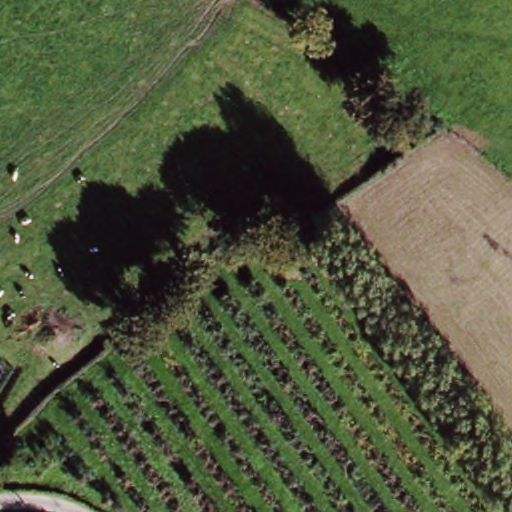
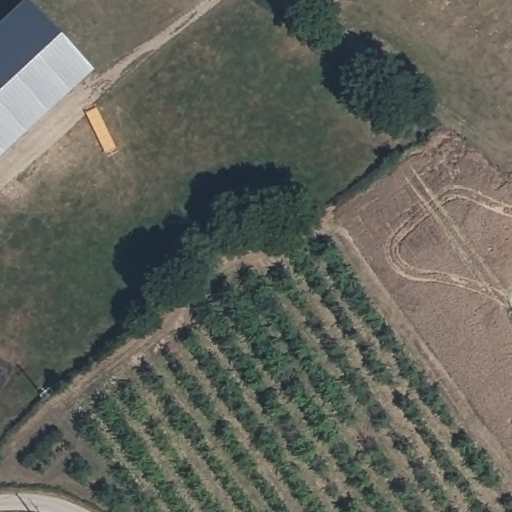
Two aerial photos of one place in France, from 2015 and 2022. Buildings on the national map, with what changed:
new [(27,3),(92,73),(0,158),(0,27),(27,3)]

